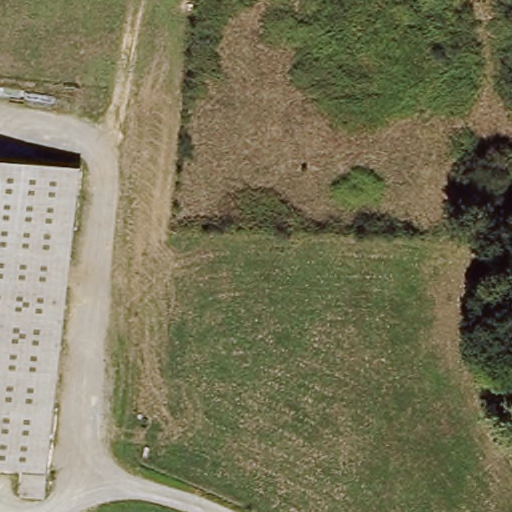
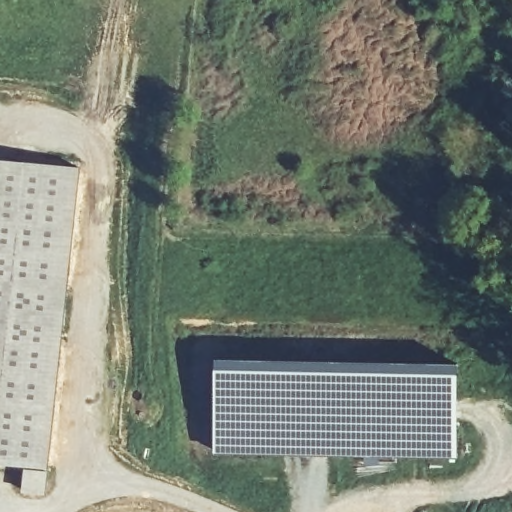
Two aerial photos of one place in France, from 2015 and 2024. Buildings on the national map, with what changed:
unchanged [(48,466),(0,462),(0,161),(71,166),(65,249),(48,466)]
new [(218,355),(460,360),(457,458),(214,454),(218,355)]
unchanged [(46,472),(46,490),(25,490),(25,472),(46,472)]

